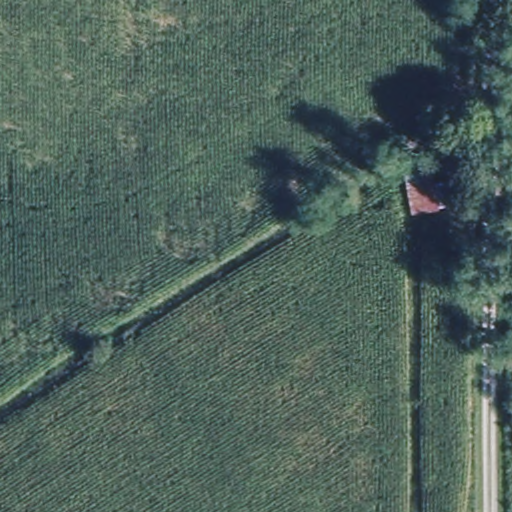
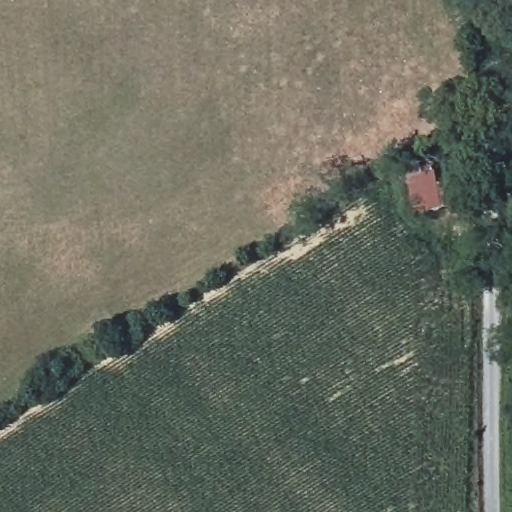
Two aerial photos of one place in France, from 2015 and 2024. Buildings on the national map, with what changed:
unchanged [(391,158),(426,156),(432,182),(446,179),(453,206),(405,215),(391,158)]

